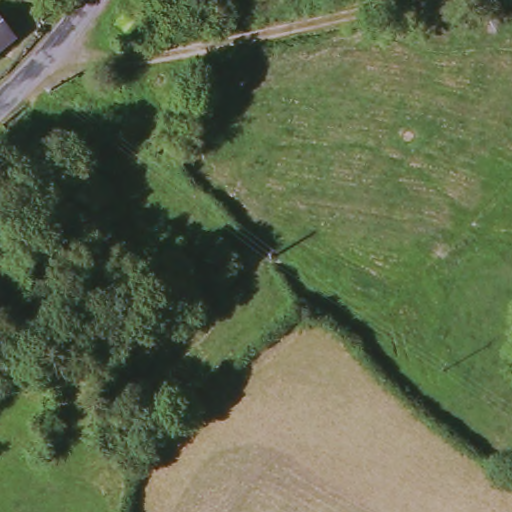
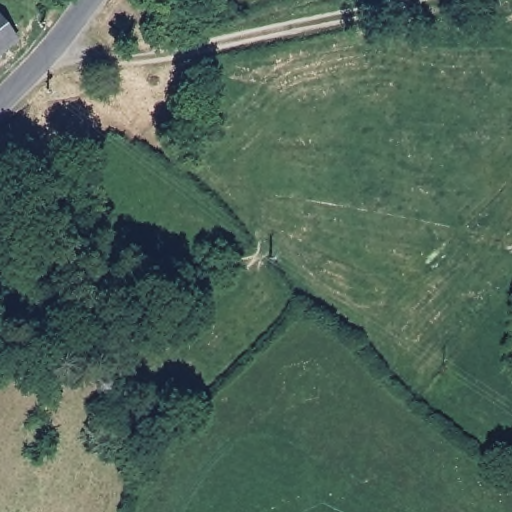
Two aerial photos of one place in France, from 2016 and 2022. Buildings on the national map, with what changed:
unchanged [(20,39),(0,56),(0,17),(20,39)]

